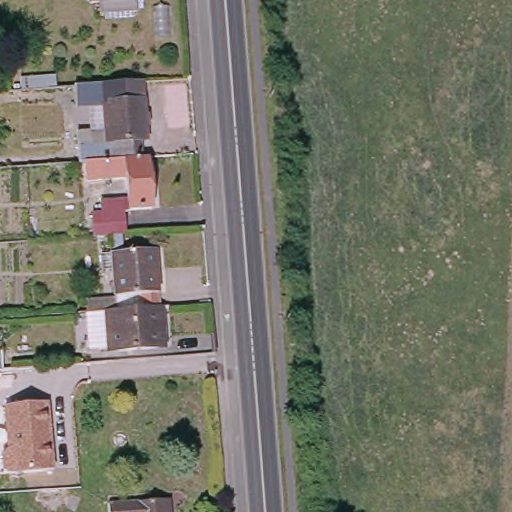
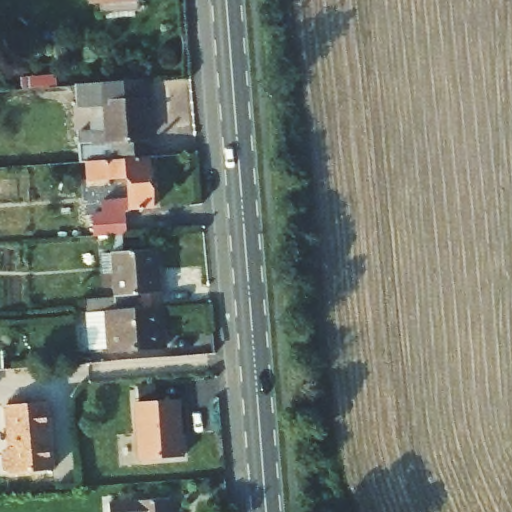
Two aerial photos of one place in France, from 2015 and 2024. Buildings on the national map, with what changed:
unchanged [(86,0),(103,0),(86,2),(86,0)]
unchanged [(141,110),(145,110),(146,120),(141,120),(143,137),(138,137),(138,154),(81,158),(73,158),(72,129),(98,127),(97,101),(70,102),(69,83),(139,78),(141,110)]
unchanged [(146,153),(149,204),(128,205),(128,207),(121,207),(123,230),(88,232),(86,211),(108,209),(108,196),(128,194),(125,173),(83,175),(81,158),(138,154),(146,153)]
unchanged [(118,305),(113,250),(155,247),(159,302),(118,305)]
unchanged [(163,344),(113,348),(111,333),(93,334),(90,307),(118,305),(159,302),(163,344)]
unchanged [(1,355),(3,371),(0,371),(0,355),(1,355)]
new [(178,400),(179,428),(178,428),(179,435),(180,435),(181,457),(138,460),(135,402),(178,400)]
unchanged [(3,407),(48,403),(54,469),(10,474),(3,471),(1,454),(7,451),(3,407)]
unchanged [(133,512),(104,512),(103,492),(148,489),(165,488),(167,512),(133,512)]

